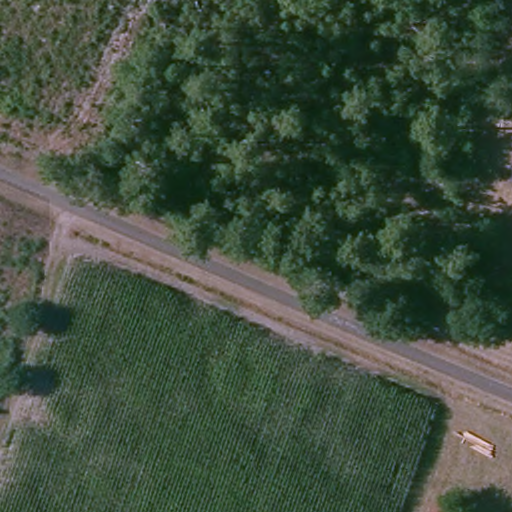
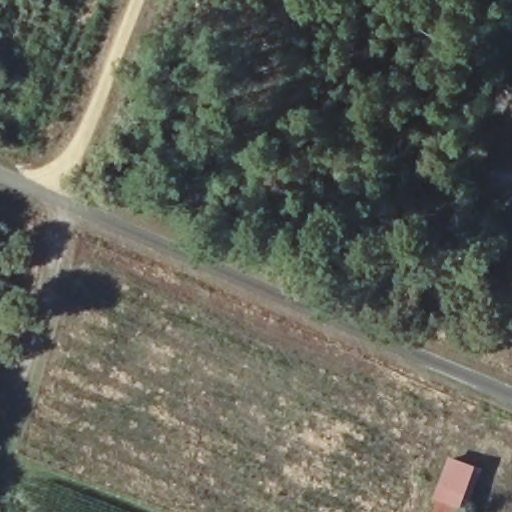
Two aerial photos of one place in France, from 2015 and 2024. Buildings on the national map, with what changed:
new [(458,512),(432,512),(437,501),(431,500),(447,455),(475,465),(458,511),(458,512)]
demolished [(435,498),(461,506),(459,512),(429,512),(435,498)]

